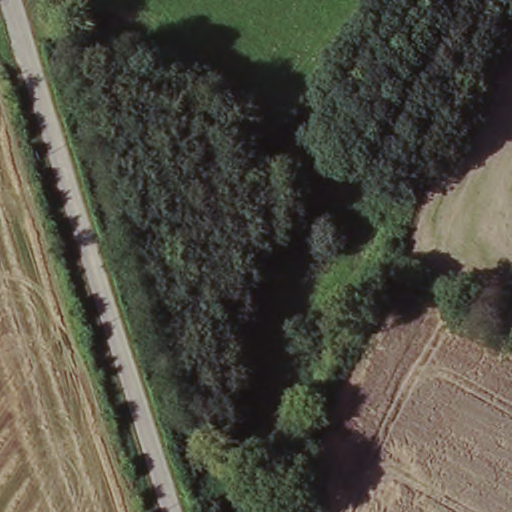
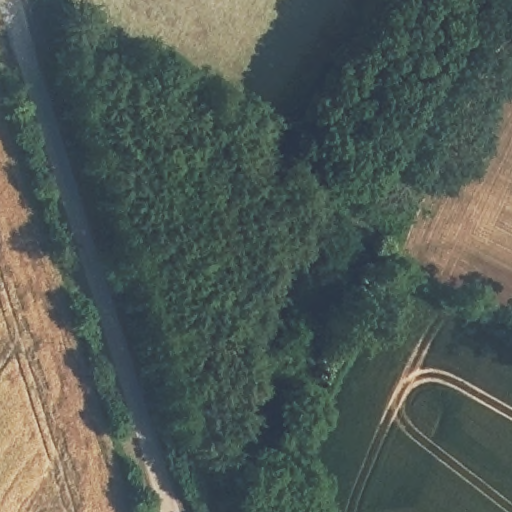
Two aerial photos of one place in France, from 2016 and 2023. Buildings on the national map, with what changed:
unchanged [(379,183),(375,192),(368,189),(372,180),(379,183)]

